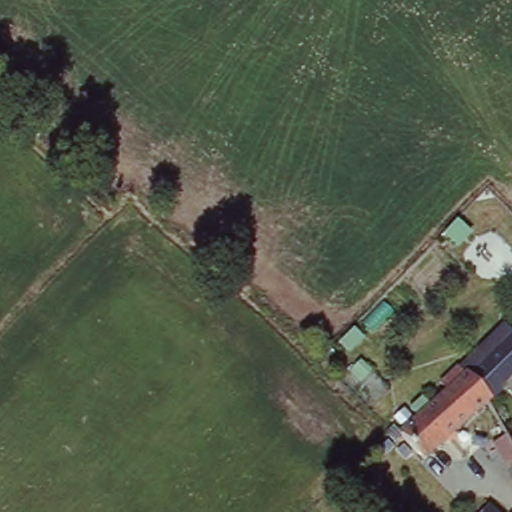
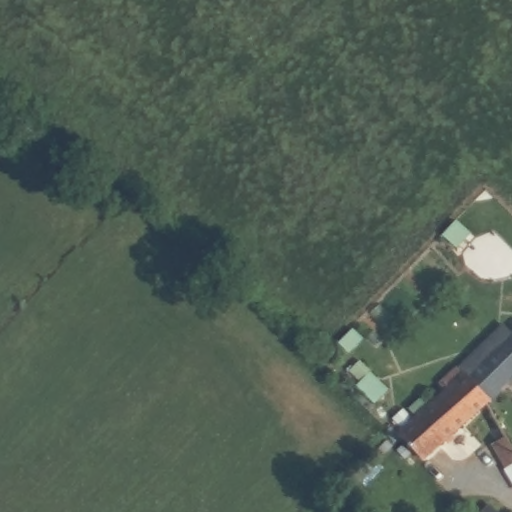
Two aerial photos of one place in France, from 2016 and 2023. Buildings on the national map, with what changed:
unchanged [(512,334),(512,374),(487,400),(467,377),(501,345),(512,334)]
unchanged [(447,397),(437,384),(453,366),(467,377),(487,400),(427,460),(404,439),(447,397)]
unchanged [(512,461),(496,469),(478,441),(494,432),(512,461)]

